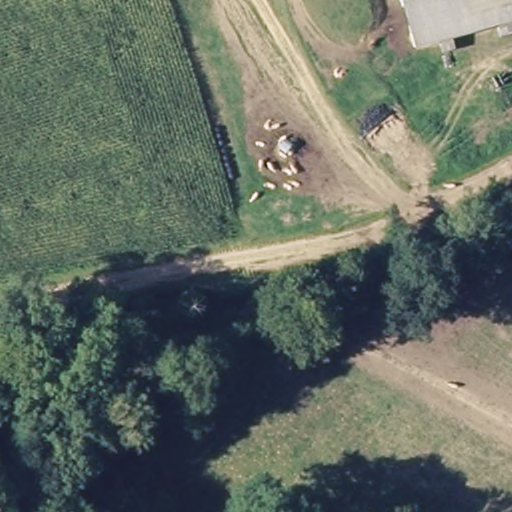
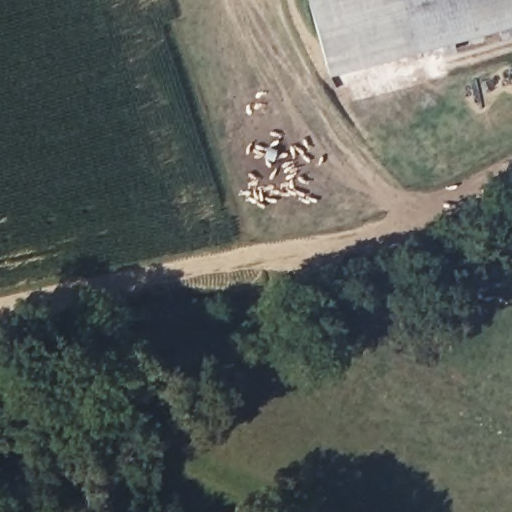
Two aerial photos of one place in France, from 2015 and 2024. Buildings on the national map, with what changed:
new [(328,74),(309,0),(405,0),(412,31),(415,45),(416,51),(328,74)]
unchanged [(405,0),(512,0),(512,9),(412,31),(405,0)]
unchanged [(412,31),(512,9),(512,23),(415,45),(412,31)]

